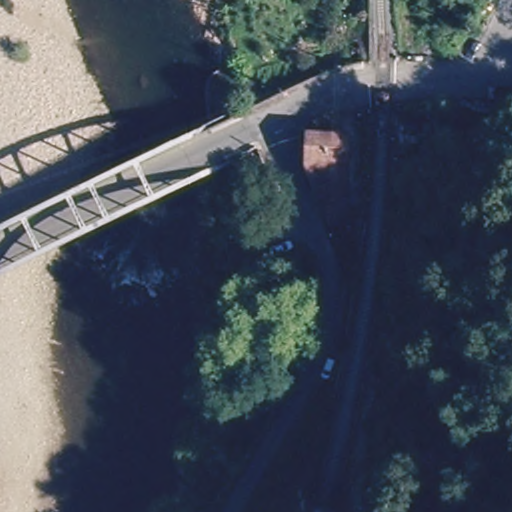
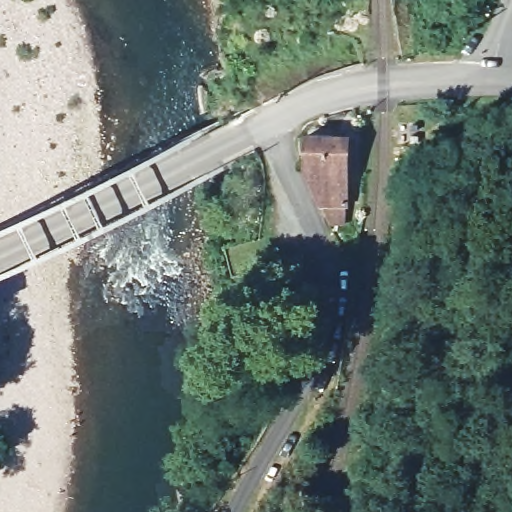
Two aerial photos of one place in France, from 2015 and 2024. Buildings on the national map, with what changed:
unchanged [(337,209),(315,202),(309,183),(315,159),(304,157),(310,134),(352,144),(337,209)]

